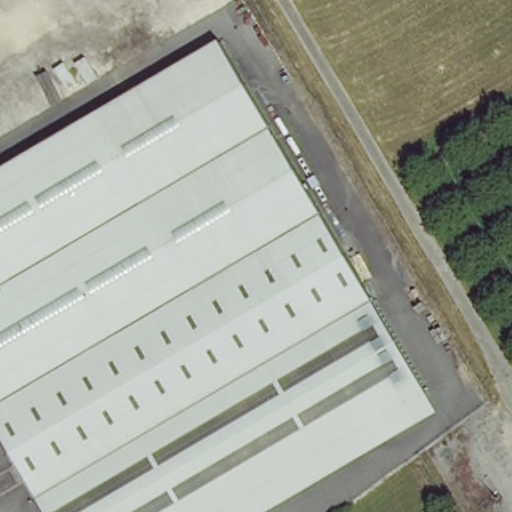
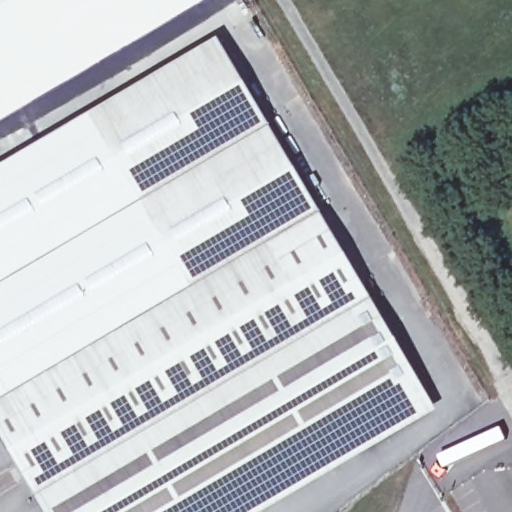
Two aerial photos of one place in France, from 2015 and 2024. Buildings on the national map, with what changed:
new [(127,40),(0,114),(0,0),(192,0),(127,40)]
unchanged [(0,169),(227,44),(237,59),(377,305),(65,481),(35,497),(0,436),(0,169)]
unchanged [(377,305),(393,335),(426,392),(212,512),(43,512),(35,497),(65,481),(377,305)]

